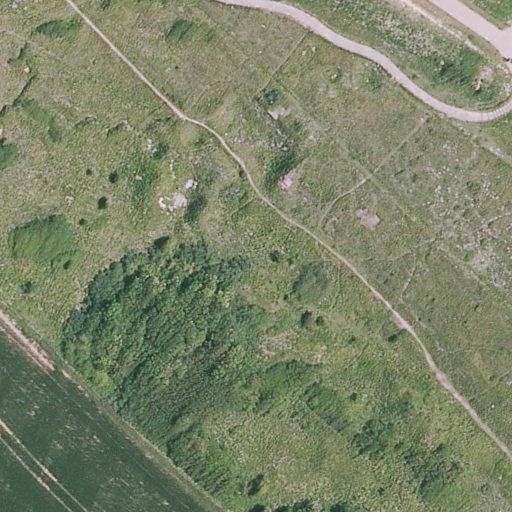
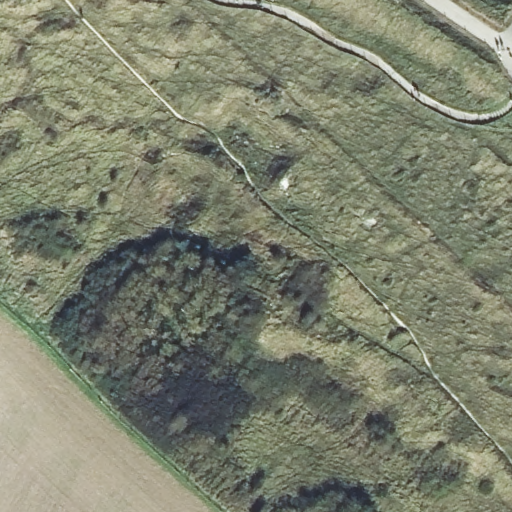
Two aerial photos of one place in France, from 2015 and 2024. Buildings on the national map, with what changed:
[]

